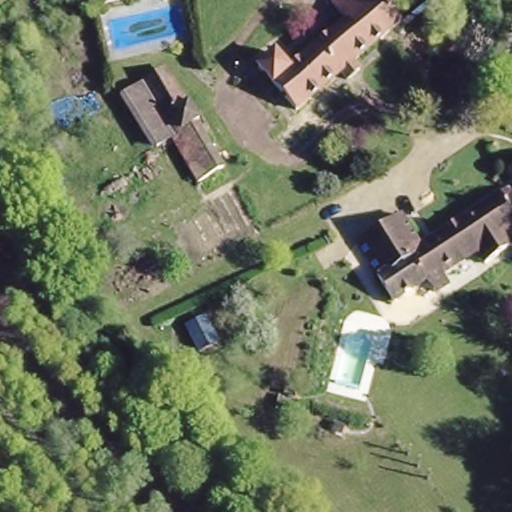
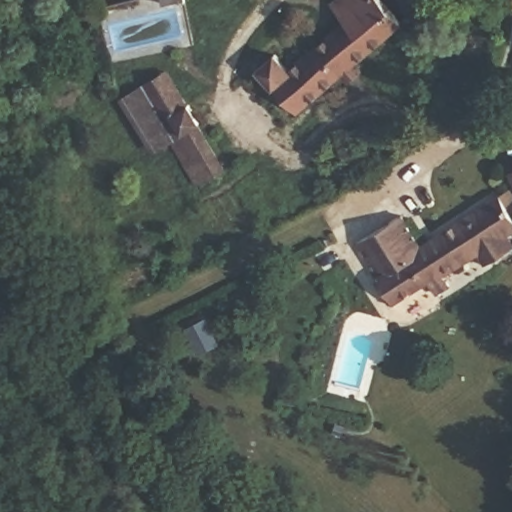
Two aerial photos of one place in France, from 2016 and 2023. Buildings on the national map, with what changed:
unchanged [(336,9),(330,0),(385,0),(403,24),(296,111),(272,83),(267,77),(254,61),(271,46),(290,68),(345,23),(336,9)]
unchanged [(163,71),(225,166),(199,184),(138,85),(163,71)]
unchanged [(506,165),(512,161),(512,174),(506,165)]
unchanged [(408,294),(388,303),(351,246),(401,214),(416,238),(501,190),(512,206),(512,232),(486,248),(408,294)]

